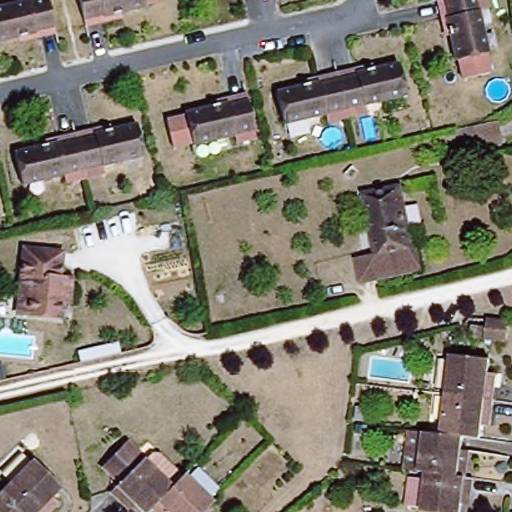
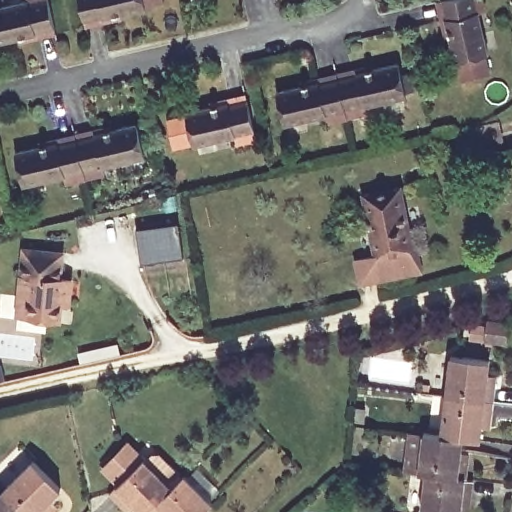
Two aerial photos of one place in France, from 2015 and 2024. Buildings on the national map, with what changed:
unchanged [(26,2),(26,0),(46,0),(53,27),(35,32),(35,35),(0,43),(0,9),(26,2)]
unchanged [(165,0),(146,5),(146,7),(103,17),(103,15),(84,20),(80,0),(165,0)]
unchanged [(476,12),(487,54),(484,54),(489,74),(462,81),(457,61),(454,61),(444,19),(446,18),(442,1),(443,0),(481,0),(484,10),(476,12)]
unchanged [(356,75),(355,72),(398,62),(406,94),(364,104),(366,112),(345,116),(336,80),(356,75)]
unchanged [(319,84),(336,80),(345,116),(326,121),(325,114),(283,124),(276,92),(318,81),(319,84)]
unchanged [(260,136),(241,141),(239,132),(198,143),(197,141),(178,146),(171,118),(191,113),(190,111),(233,101),(233,103),(251,99),(260,136)]
unchanged [(94,137),(93,135),(136,125),(143,157),(102,166),(103,174),(83,179),(74,142),(94,137)]
unchanged [(499,126),(502,141),(455,151),(452,136),(499,126)]
unchanged [(83,179),(64,183),(63,176),(21,186),(13,154),(55,143),(57,146),(74,142),(83,179)]
unchanged [(359,262),(379,258),(366,194),(404,187),(417,250),(421,249),(425,271),(364,283),(359,262)]
new [(178,222),(183,256),(141,262),(135,228),(178,222)]
unchanged [(25,294),(33,245),(72,250),(68,277),(79,277),(76,301),(68,300),(66,316),(33,312),(23,310),(25,294)]
unchanged [(487,326),(488,319),(510,322),(509,341),(486,338),(470,337),(471,324),(487,326)]
unchanged [(497,358),(494,373),(504,374),(503,379),(500,400),(451,393),(456,353),(497,358)]
unchanged [(489,425),(487,439),(471,437),(446,434),(451,393),(500,400),(498,420),(498,426),(489,425)]
unchanged [(424,470),(409,468),(414,430),(428,432),(446,434),(471,437),(469,450),(477,451),(476,456),(474,477),(431,472),(424,470)]
unchanged [(142,501),(136,506),(116,486),(126,477),(109,461),(134,436),(152,453),(163,443),(189,470),(156,502),(150,509),(142,501)]
unchanged [(56,507),(51,512),(31,512),(5,486),(33,458),(62,487),(53,497),(60,503),(56,507)]
unchanged [(156,502),(189,470),(191,467),(219,496),(203,512),(166,512),(156,502)]
unchanged [(468,502),(466,512),(426,512),(431,472),(474,477),(479,477),(477,499),(477,504),(468,502)]
unchanged [(5,486),(31,512),(0,512),(0,491),(5,486)]

